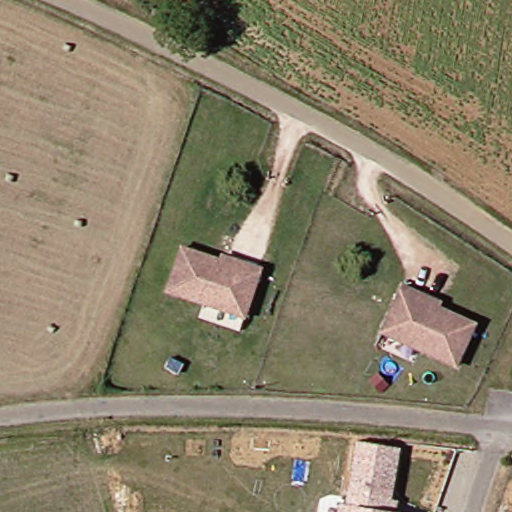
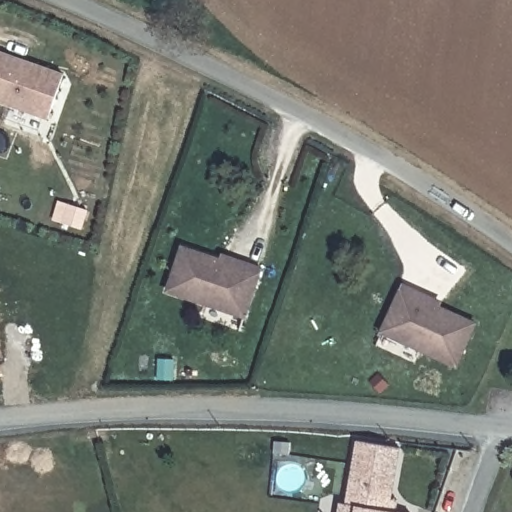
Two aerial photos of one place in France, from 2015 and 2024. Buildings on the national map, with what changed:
new [(46,120),(0,103),(0,51),(64,74),(46,120)]
unchanged [(253,319),(176,294),(191,250),(230,262),(231,258),(251,264),(270,271),(253,319)]
unchanged [(467,368),(395,335),(416,288),(434,296),(452,304),(450,309),(487,328),(467,368)]
unchanged [(340,494),(346,494),(354,433),(396,440),(389,492),(395,493),(394,504),(410,507),(410,512),(337,512),(340,494)]

